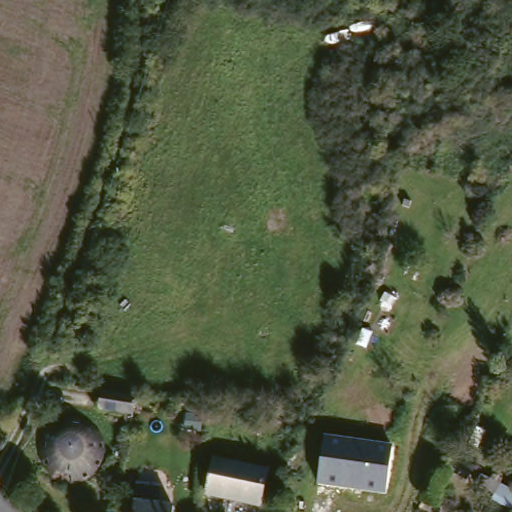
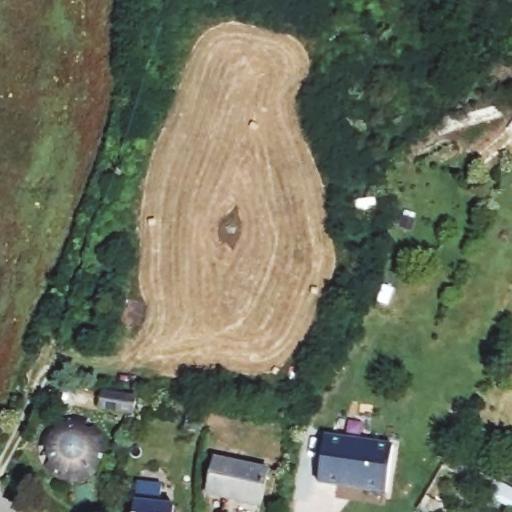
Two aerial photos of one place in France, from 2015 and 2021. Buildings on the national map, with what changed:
unchanged [(152,405),(146,422),(116,416),(120,398),(152,405)]
unchanged [(326,435),(393,446),(386,496),(318,485),(326,435)]
unchanged [(469,460),(465,467),(442,456),(446,448),(469,460)]
unchanged [(86,454),(87,455),(89,455),(90,456),(91,457),(92,457),(93,458),(94,460),(94,461),(95,462),(95,463),(95,465),(95,466),(95,467),(95,468),(94,470),(93,471),(92,472),(92,473),(91,474),(89,475),(88,475),(87,476),(85,476),(84,476),(82,476),(81,476),(80,475),(79,474),(77,473),(77,472),(76,472),(75,471),(75,469),(74,468),(74,467),(74,466),(74,464),(74,462),(74,461),(75,460),(76,459),(76,457),(77,457),(78,456),(80,455),(81,455),(82,455),(84,454),(85,454),(86,454)]
unchanged [(263,512),(261,512),(206,500),(216,463),(272,477),(263,512)]
unchanged [(493,480),(472,470),(477,464),(497,473),(493,480)]
unchanged [(163,512),(137,512),(141,490),(167,496),(163,512)]

